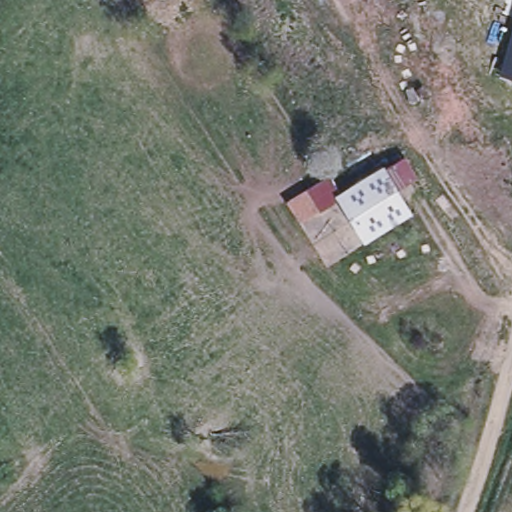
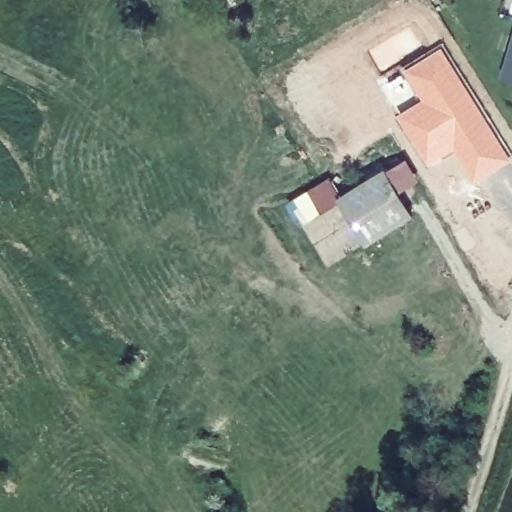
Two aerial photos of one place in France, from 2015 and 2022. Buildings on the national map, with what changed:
new [(500,78),(512,37),(512,81),(500,78)]
new [(510,164),(473,186),(454,154),(427,168),(396,118),(421,103),(403,73),(440,50),(510,164)]
unchanged [(385,168),(415,214),(371,242),(341,195),(385,168)]

